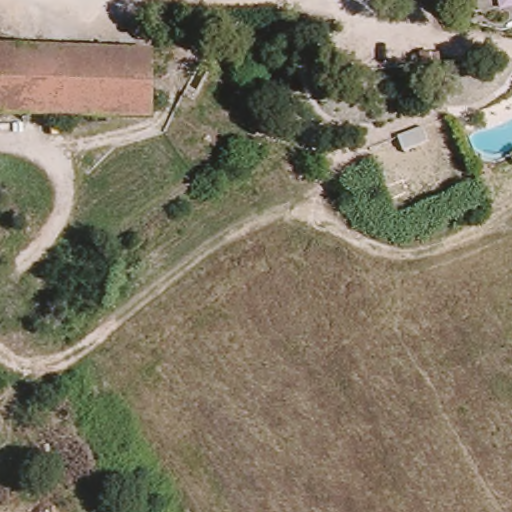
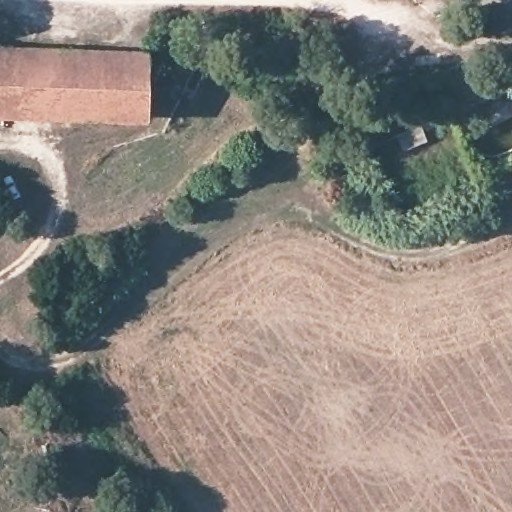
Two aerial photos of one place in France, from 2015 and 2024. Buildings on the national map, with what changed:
unchanged [(150,111),(0,108),(0,40),(152,44),(150,111)]

